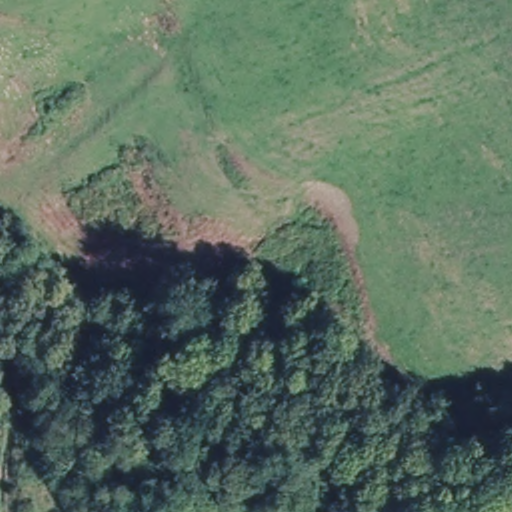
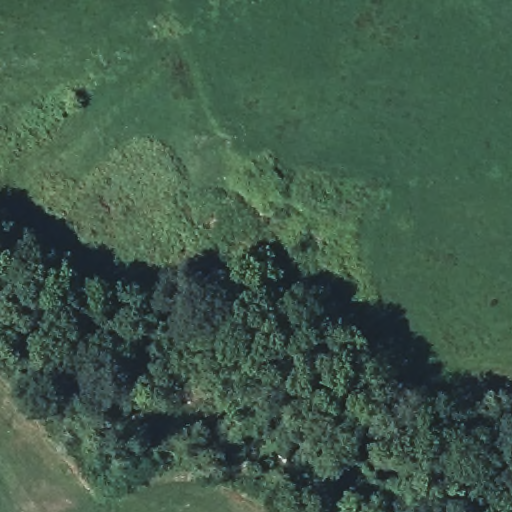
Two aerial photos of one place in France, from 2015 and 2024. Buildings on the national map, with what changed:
[]

